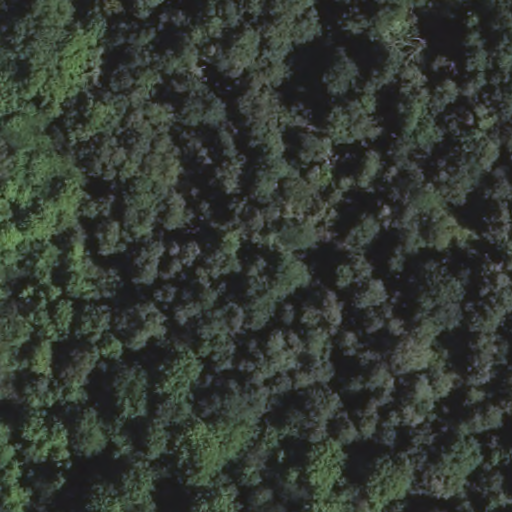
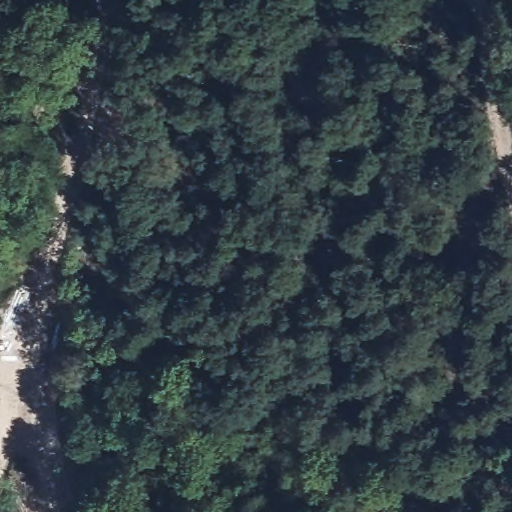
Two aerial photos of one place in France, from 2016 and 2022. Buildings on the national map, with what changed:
[]

